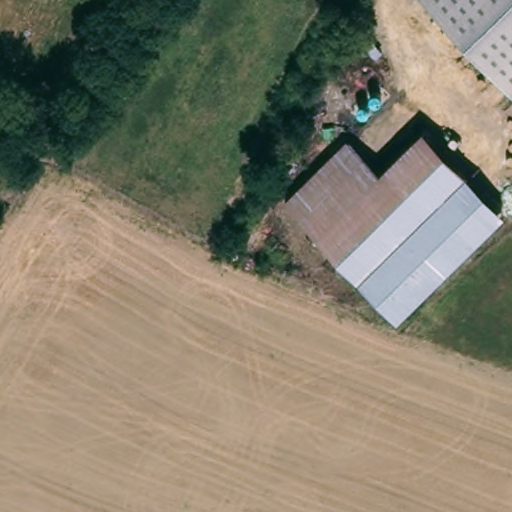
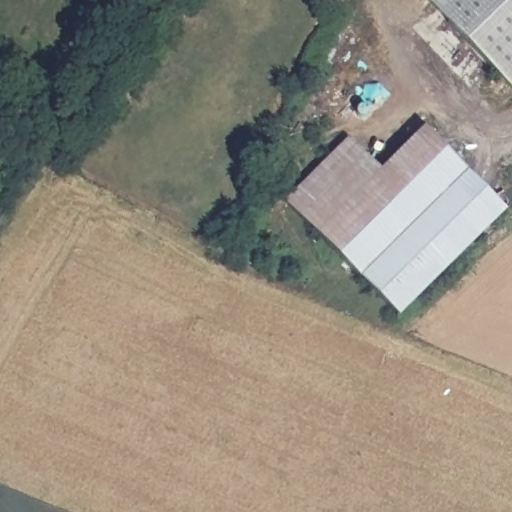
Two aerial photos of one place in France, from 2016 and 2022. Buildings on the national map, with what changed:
unchanged [(512,0),(512,88),(430,0),(512,0)]
unchanged [(507,209),(400,316),(318,232),(286,200),(350,136),(381,167),(425,123),(507,209)]

